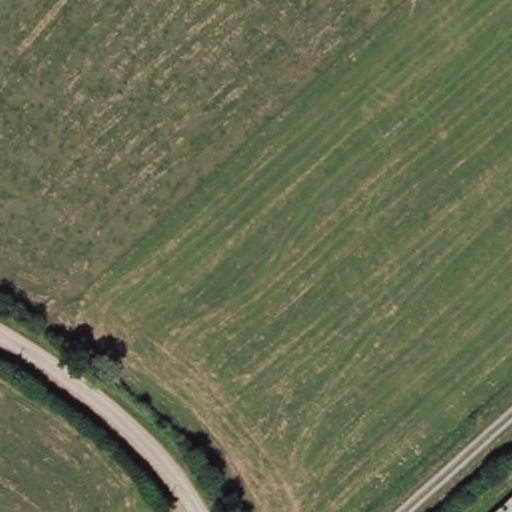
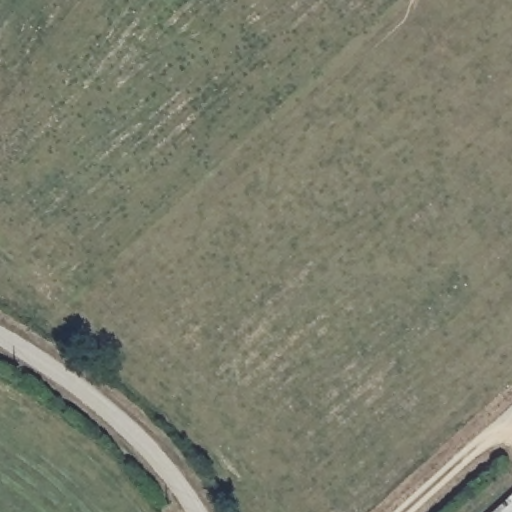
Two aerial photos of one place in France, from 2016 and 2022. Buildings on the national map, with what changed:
unchanged [(512,512),(494,512),(512,496),(512,512)]

